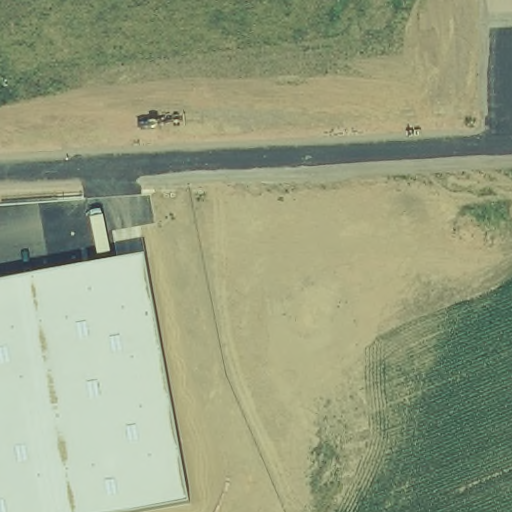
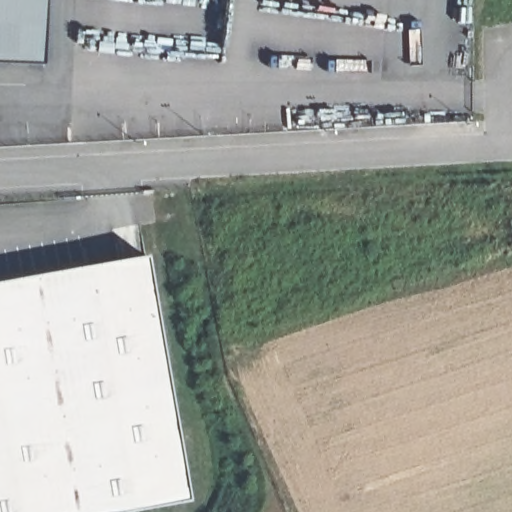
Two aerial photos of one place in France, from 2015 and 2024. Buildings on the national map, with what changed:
new [(48,71),(0,69),(0,0),(52,0),(48,71)]
unchanged [(146,255),(190,499),(117,512),(0,512),(0,281),(146,255)]

